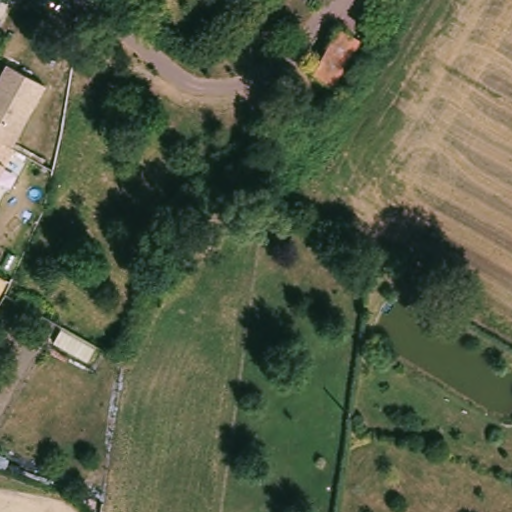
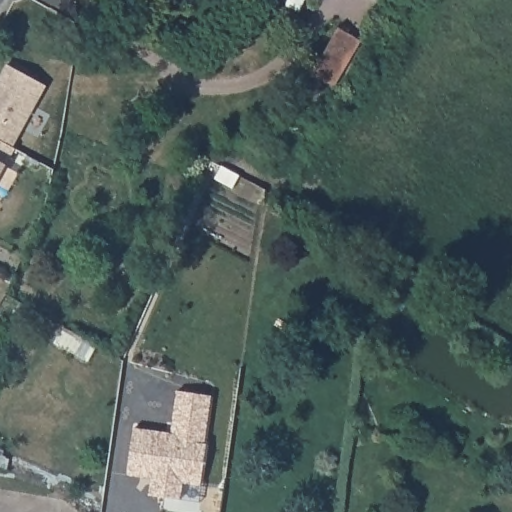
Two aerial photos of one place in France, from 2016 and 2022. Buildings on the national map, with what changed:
unchanged [(342,82),(320,69),(332,49),(346,21),(369,35),(342,82)]
unchanged [(6,167),(0,176),(0,73),(5,63),(50,85),(9,161),(6,167)]
new [(134,430),(171,436),(170,442),(181,443),(183,427),(172,425),(177,393),(211,398),(204,446),(206,447),(200,488),(182,485),(180,502),(149,497),(151,481),(127,477),(134,430)]

